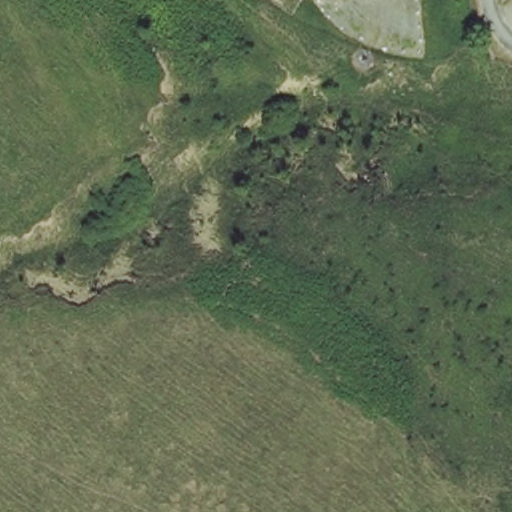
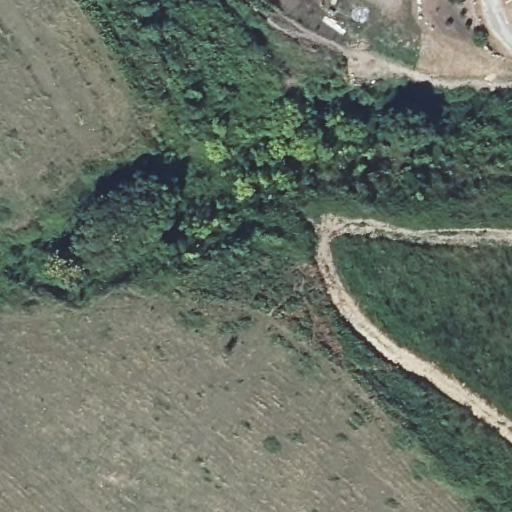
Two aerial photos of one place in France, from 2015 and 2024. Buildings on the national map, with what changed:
[]

